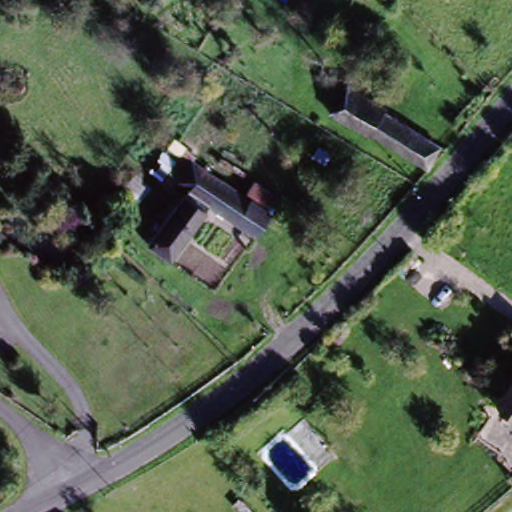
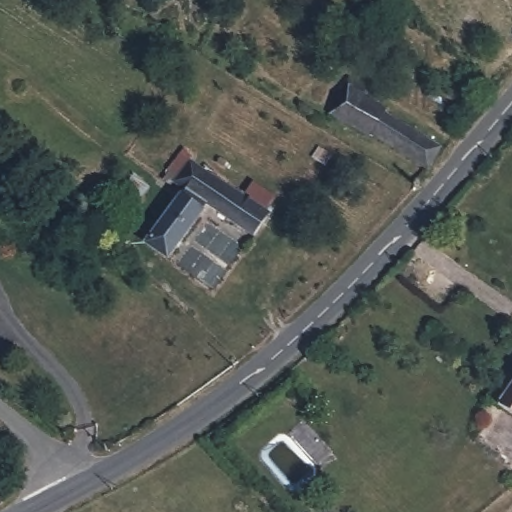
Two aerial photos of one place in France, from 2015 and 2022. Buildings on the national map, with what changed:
unchanged [(435,170),(379,138),(376,142),(334,116),(358,78),(378,89),(372,98),(392,111),(388,118),(450,152),(435,170)]
unchanged [(147,243),(188,187),(174,177),(187,154),(207,167),(263,204),(283,218),(275,229),(263,221),(254,233),(205,199),(164,256),(147,243)]
unchanged [(512,405),(512,418),(506,414),(512,405)]

